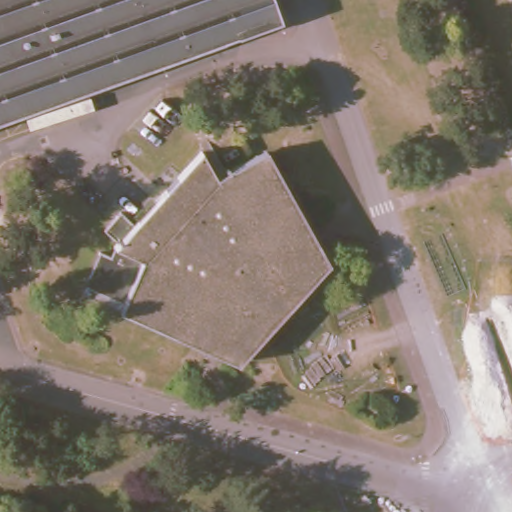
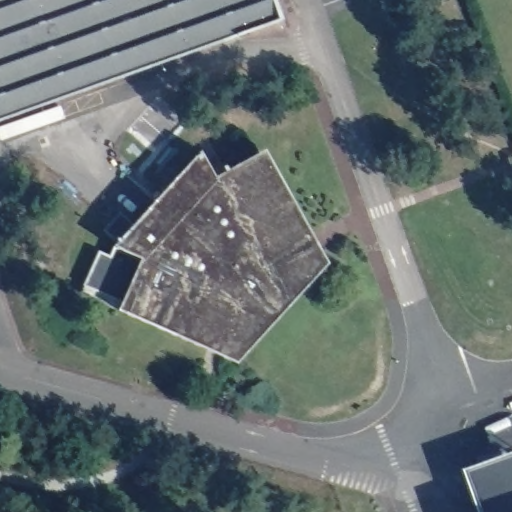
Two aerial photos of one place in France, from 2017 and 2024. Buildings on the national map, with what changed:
unchanged [(0,116),(0,0),(275,0),(280,15),(0,116)]
unchanged [(200,147),(215,177),(141,257),(112,246),(200,147)]
unchanged [(215,177),(261,148),(328,263),(236,363),(117,305),(141,257),(215,177)]
unchanged [(98,247),(108,252),(112,246),(141,257),(117,305),(77,287),(98,247)]
new [(460,470),(512,451),(512,512),(476,512),(460,470)]

